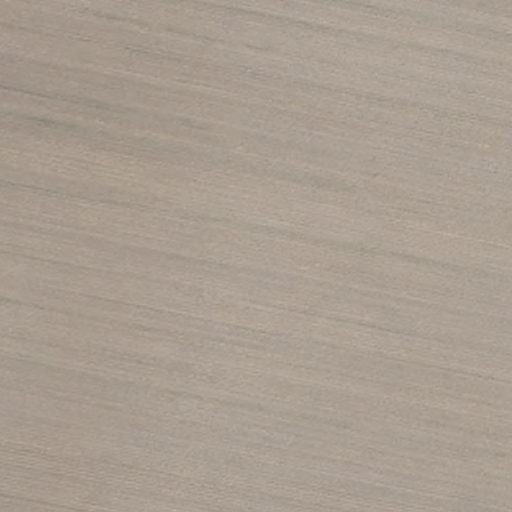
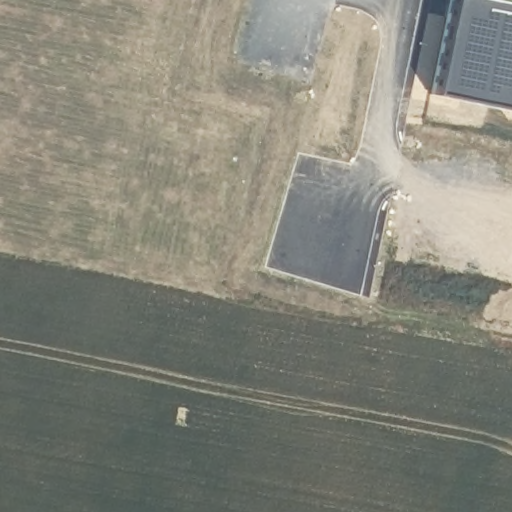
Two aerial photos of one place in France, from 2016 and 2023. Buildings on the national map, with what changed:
new [(429,94),(449,0),(512,0),(512,109),(429,94)]

